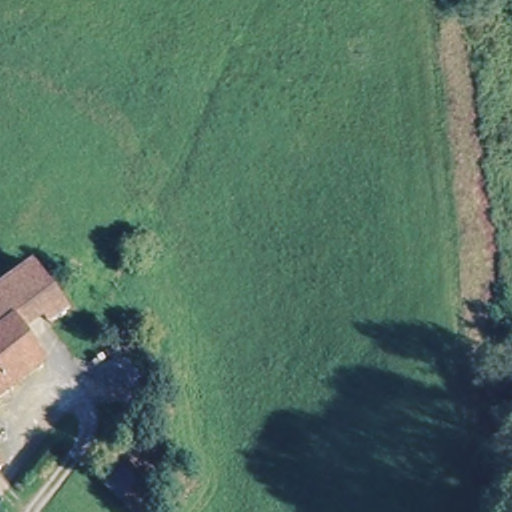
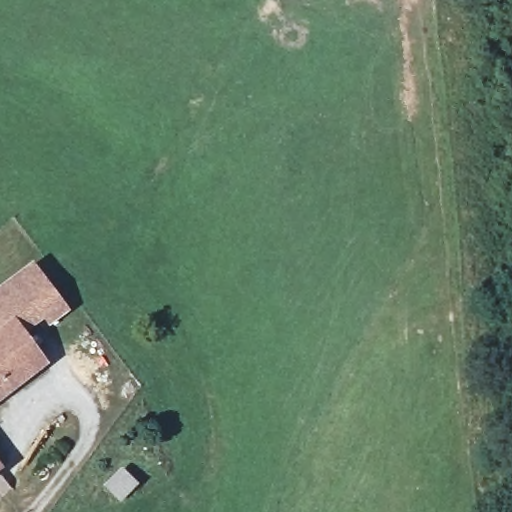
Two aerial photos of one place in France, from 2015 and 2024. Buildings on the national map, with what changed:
unchanged [(53,301),(13,333),(8,326),(0,333),(0,292),(29,271),(53,301)]
unchanged [(0,401),(0,333),(8,326),(13,333),(41,368),(0,401)]

